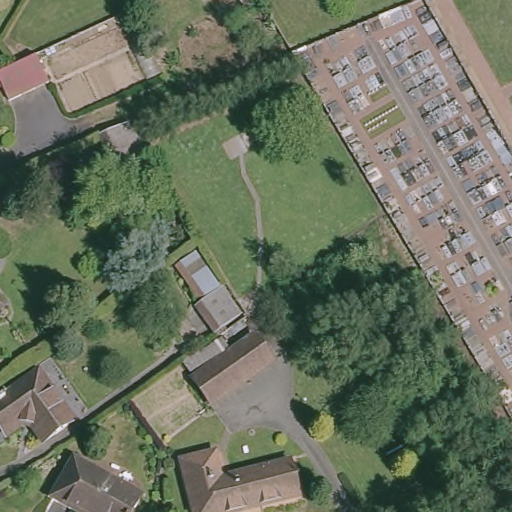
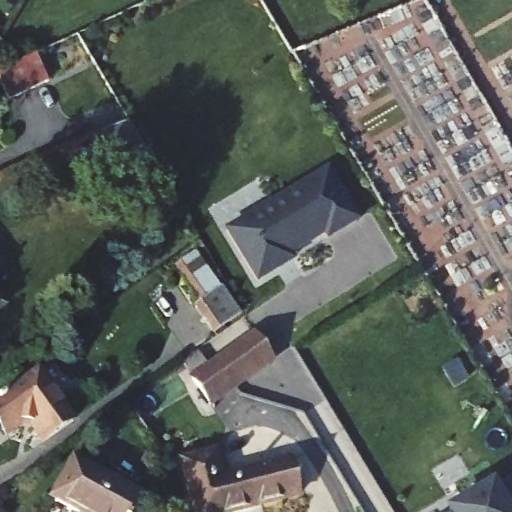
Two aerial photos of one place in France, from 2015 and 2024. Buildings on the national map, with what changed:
unchanged [(25,60),(41,51),(56,81),(15,98),(2,71),(25,60)]
unchanged [(128,178),(102,138),(130,126),(155,166),(128,178)]
new [(280,267),(257,282),(227,231),(328,170),(358,221),(328,239),(325,234),(290,255),(293,260),(280,267)]
unchanged [(201,303),(227,287),(244,313),(218,329),(201,303)]
unchanged [(5,301),(0,305),(0,294),(5,301)]
unchanged [(212,408),(195,385),(255,339),(271,361),(272,363),(212,408)]
unchanged [(39,420),(28,419),(15,428),(0,407),(0,399),(45,368),(81,418),(53,438),(39,420)]
unchanged [(56,502),(76,464),(144,500),(138,512),(77,512),(56,502)]
unchanged [(300,505),(271,512),(193,512),(184,472),(218,465),(223,487),(290,471),(300,505)]
new [(450,511),(492,485),(495,489),(512,479),(512,512),(450,512),(450,511)]

